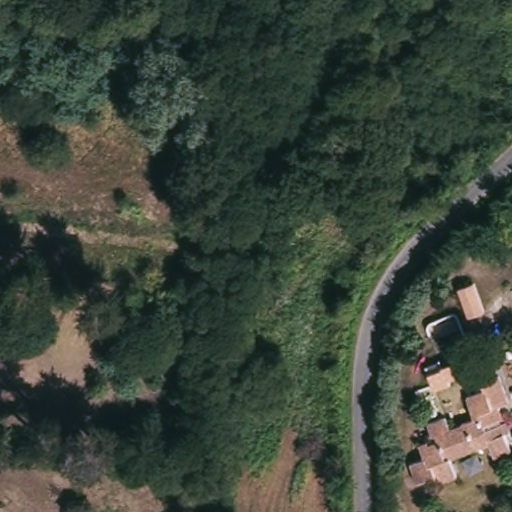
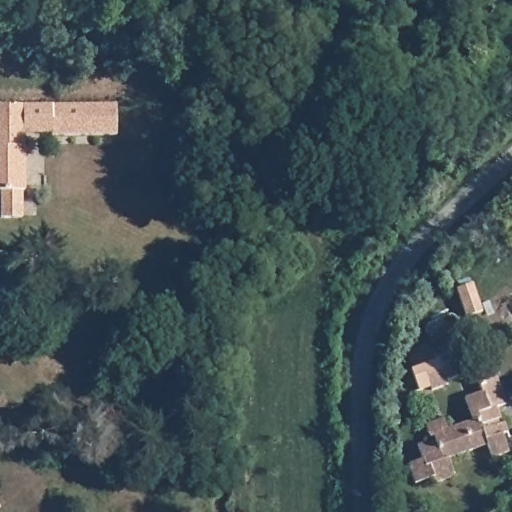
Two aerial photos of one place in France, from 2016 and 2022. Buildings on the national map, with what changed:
new [(0,189),(0,103),(118,103),(118,133),(53,134),(53,131),(26,131),(26,189),(24,189),(24,216),(2,216),(2,189),(0,189)]
unchanged [(458,376),(446,380),(447,384),(431,390),(425,373),(440,368),(439,366),(453,362),(458,376)]
unchanged [(488,453),(483,442),(447,459),(454,475),(435,484),(432,478),(415,485),(406,465),(419,460),(413,447),(422,443),(423,446),(431,442),(429,437),(426,438),(421,428),(437,421),(441,428),(464,418),(455,399),(472,392),(468,383),(486,376),(497,402),(488,407),(492,415),(491,416),(493,420),(498,417),(503,427),(497,429),(505,446),(488,453)]
unchanged [(512,430),(511,429),(512,429),(512,430)]

